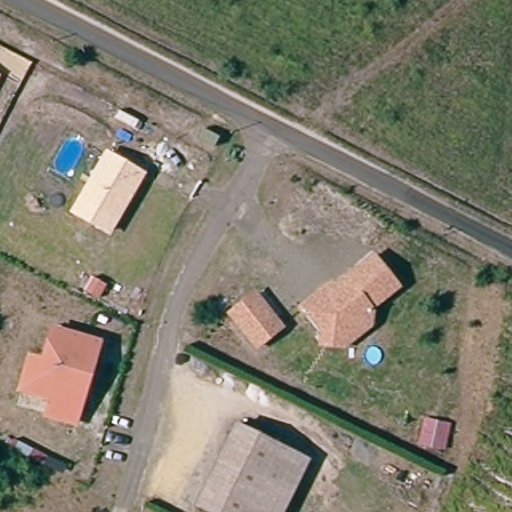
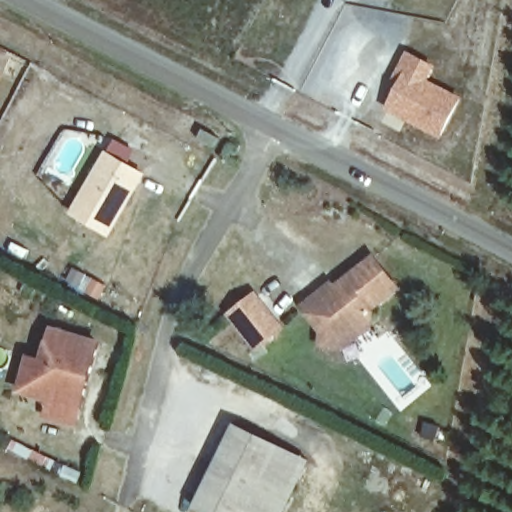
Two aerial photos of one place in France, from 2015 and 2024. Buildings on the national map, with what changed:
new [(393,82),(401,67),(410,53),(434,66),(426,80),(460,100),(440,135),(405,116),(387,106),(400,86),(393,82)]
unchanged [(0,76),(1,76),(0,78),(0,76)]
unchanged [(217,141),(212,150),(196,142),(200,132),(217,141)]
unchanged [(105,150),(146,174),(110,236),(69,212),(105,150)]
unchanged [(340,345),(316,342),(318,330),(298,305),(314,292),(321,293),(370,255),(394,286),(366,308),(368,310),(366,325),(340,345)]
unchanged [(281,325),(256,345),(230,312),(256,292),(281,325)]
unchanged [(30,357),(45,362),(56,328),(99,341),(75,420),(49,412),(54,396),(36,391),(21,387),(30,357)]
new [(425,422),(438,426),(434,440),(421,435),(425,422)]
unchanged [(207,512),(195,506),(235,425),(280,447),(248,512),(207,512)]
unchanged [(281,512),(248,512),(280,447),(306,460),(281,512)]

